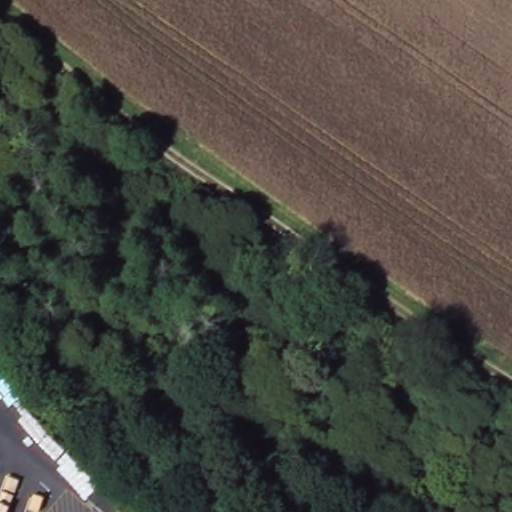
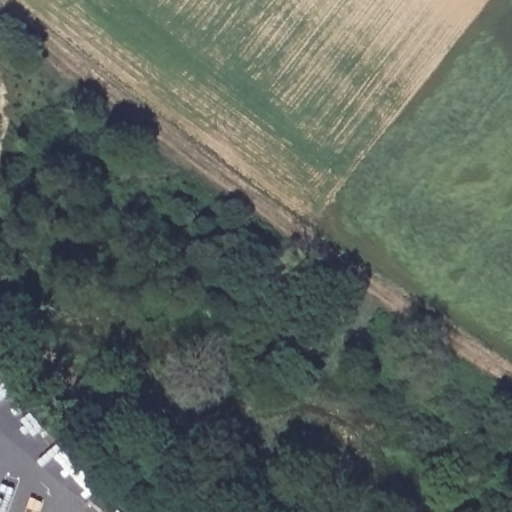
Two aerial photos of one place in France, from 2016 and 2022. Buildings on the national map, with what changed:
[]

